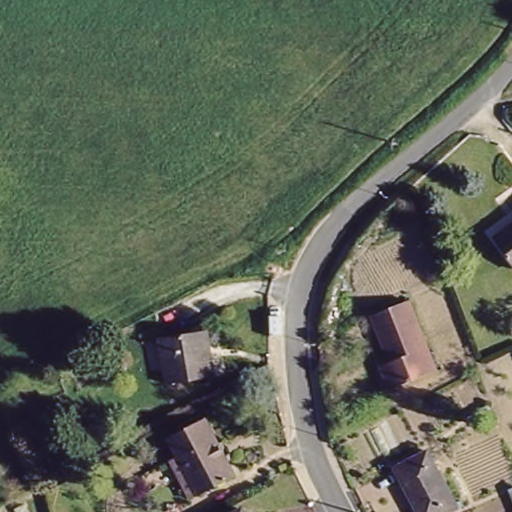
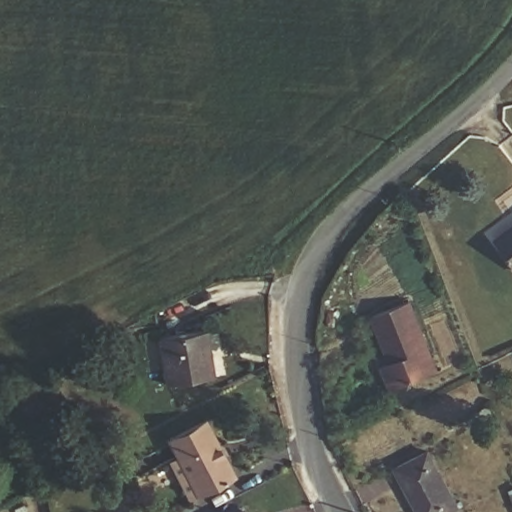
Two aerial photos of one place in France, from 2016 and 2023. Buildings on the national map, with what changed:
unchanged [(512,226),(512,261),(495,239),(512,226)]
unchanged [(438,369),(394,388),(382,361),(389,358),(374,325),(370,314),(407,298),(410,305),(438,369)]
unchanged [(201,332),(213,375),(172,387),(160,344),(201,332)]
unchanged [(206,421),(236,476),(195,499),(165,438),(206,421)]
unchanged [(439,512),(417,512),(405,488),(397,474),(431,456),(441,474),(456,504),(439,512)]
unchanged [(512,492),(512,496),(511,493),(512,492)]
unchanged [(235,512),(240,510),(240,512),(235,512)]

